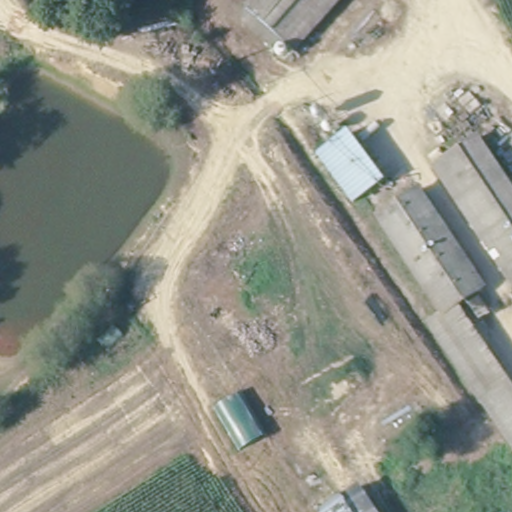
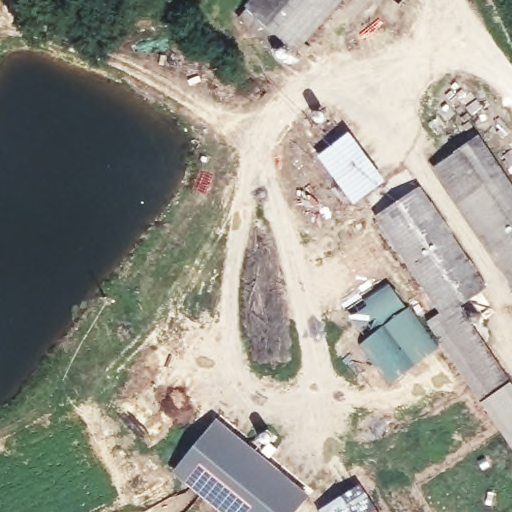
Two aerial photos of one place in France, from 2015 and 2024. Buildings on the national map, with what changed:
unchanged [(293,53),(247,8),(245,5),(250,0),(344,0),(293,53)]
unchanged [(357,200),(332,162),(324,152),(350,136),(356,146),(382,183),(357,200)]
unchanged [(479,145),(512,190),(512,259),(446,170),(479,145)]
unchanged [(512,281),(434,177),(446,170),(512,259),(512,281)]
unchanged [(379,223),(420,193),(484,288),(448,314),(442,317),(379,223)]
new [(436,346),(386,386),(357,347),(408,306),(436,346)]
unchanged [(442,317),(448,314),(494,384),(481,394),(432,324),(442,317)]
unchanged [(511,374),(512,376),(512,417),(502,425),(481,394),(494,384),(511,374)]
unchanged [(512,417),(512,440),(502,425),(512,417)]
new [(311,497),(298,512),(221,512),(172,473),(216,419),(311,497)]
unchanged [(379,512),(321,512),(363,486),(379,512)]

